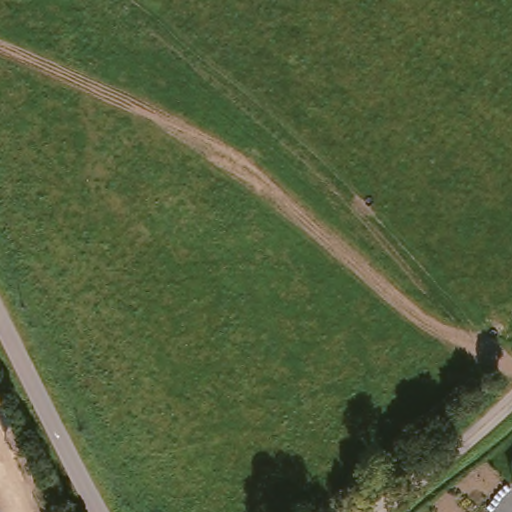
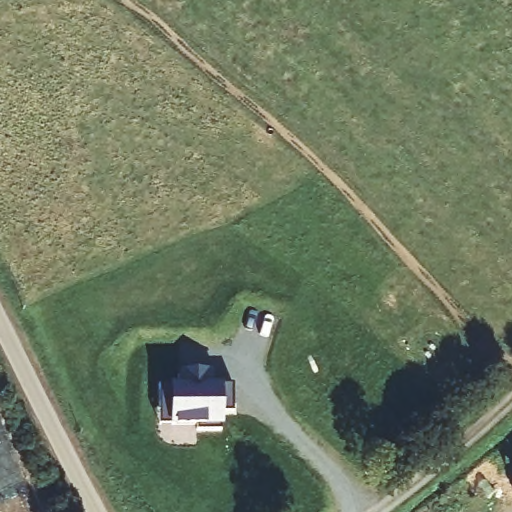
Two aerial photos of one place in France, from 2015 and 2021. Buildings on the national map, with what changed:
new [(214,370),(215,381),(232,382),(232,411),(222,411),(222,432),(197,432),(197,427),(159,426),(159,382),(171,383),(170,380),(181,379),(181,369),(214,370)]

